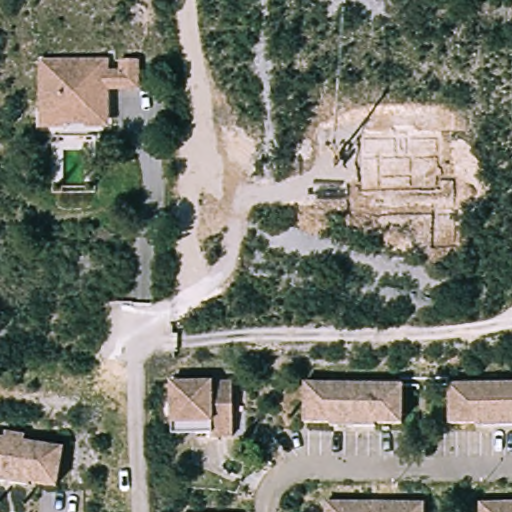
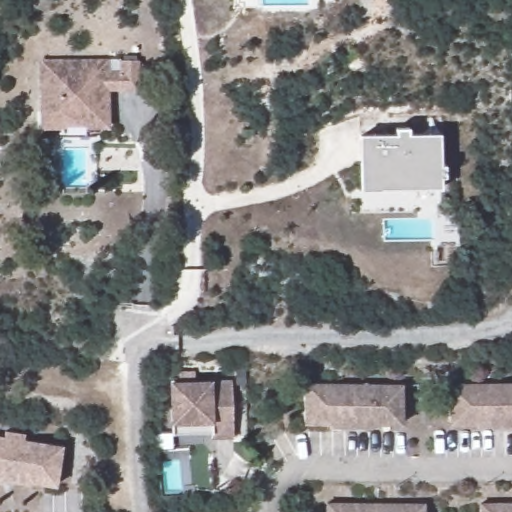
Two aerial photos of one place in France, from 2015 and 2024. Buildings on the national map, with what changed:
unchanged [(109,59),(109,70),(119,70),(119,60),(139,60),(140,90),(109,91),(110,128),(86,129),(86,125),(63,125),(63,129),(39,129),(39,59),(109,59)]
new [(360,188),(359,136),(393,136),(394,129),(406,129),(406,134),(438,134),(438,165),(442,165),(442,176),(437,177),(438,186),(360,188)]
unchanged [(168,426),(167,383),(230,382),(231,440),(211,440),(211,434),(169,435),(170,426),(168,426)]
unchanged [(306,383),(403,384),(402,423),(305,422),(306,383)]
unchanged [(450,384),(512,383),(512,423),(450,423),(450,384)]
unchanged [(3,434),(4,428),(22,431),(22,436),(61,442),(54,484),(30,481),(30,483),(0,478),(0,434),(3,434)]
unchanged [(424,503),(424,512),(327,512),(327,503),(424,503)]
unchanged [(512,503),(512,512),(481,512),(481,503),(512,503)]

